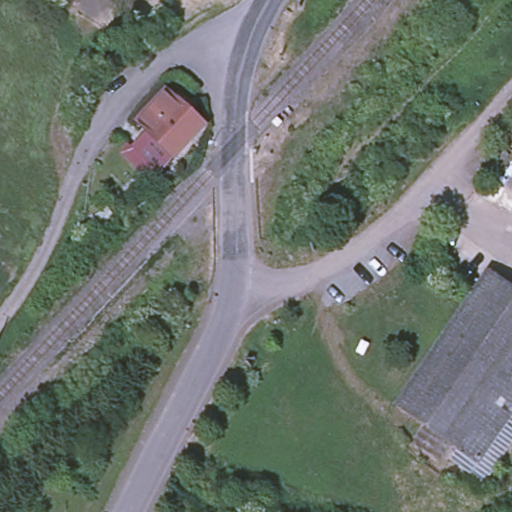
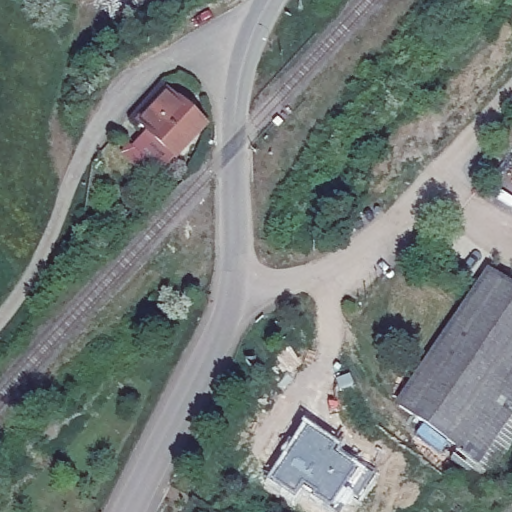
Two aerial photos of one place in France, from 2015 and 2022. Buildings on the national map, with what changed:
unchanged [(129,143),(137,135),(152,120),(145,113),(174,83),(185,94),(187,93),(210,116),(165,161),(162,159),(154,167),(129,143)]
unchanged [(512,291),(512,419),(487,461),(400,408),(482,273),(512,291)]
new [(340,446),(337,451),(359,463),(332,505),(314,494),(319,489),(300,481),(293,492),(272,480),(305,421),(340,446)]

